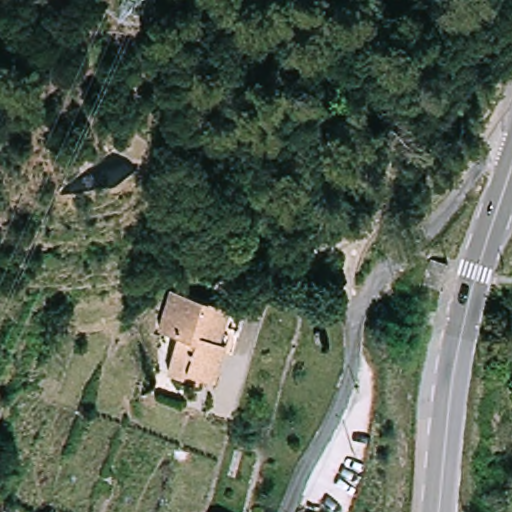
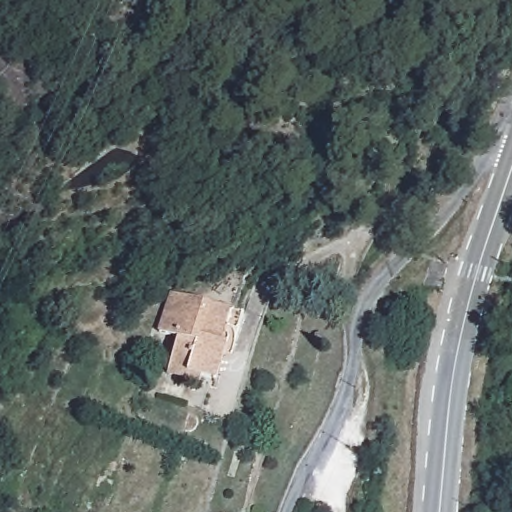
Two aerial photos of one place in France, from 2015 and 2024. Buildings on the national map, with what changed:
unchanged [(441,299),(425,296),(430,270),(446,273),(441,299)]
unchanged [(206,377),(204,384),(169,375),(181,337),(164,333),(171,308),(176,290),(251,308),(249,314),(245,328),(238,327),(220,380),(206,377)]

